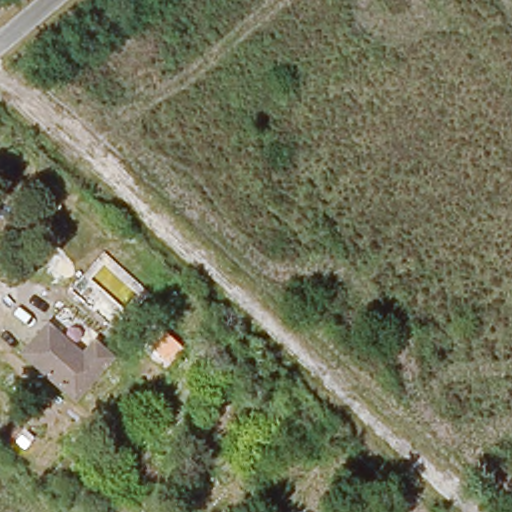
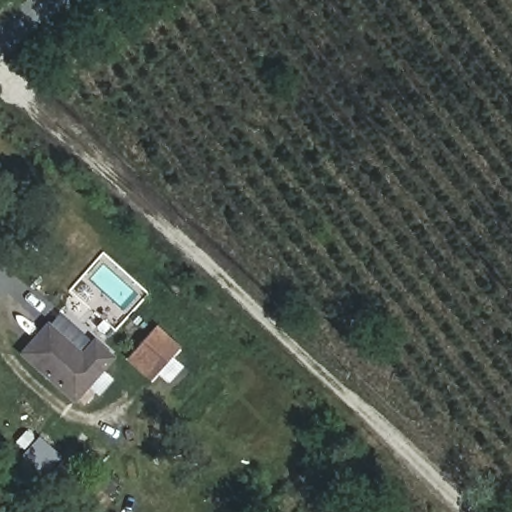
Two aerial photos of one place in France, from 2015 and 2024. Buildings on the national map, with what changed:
unchanged [(120,350),(76,397),(24,348),(52,319),(81,349),(99,331),(120,350)]
new [(181,346),(151,381),(127,359),(157,325),(181,346)]
unchanged [(13,432),(28,419),(47,442),(34,453),(13,432)]
unchanged [(70,450),(114,496),(94,511),(52,464),(70,450)]

